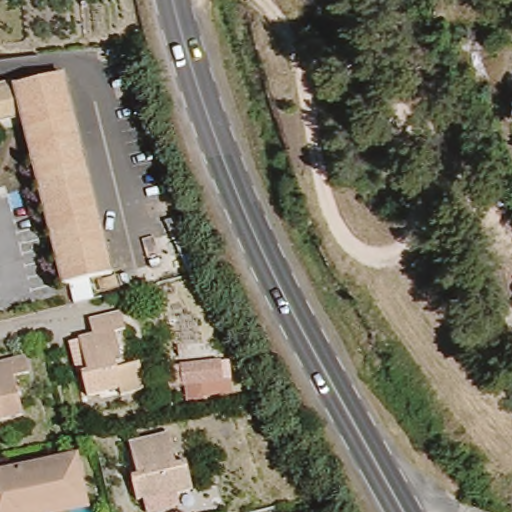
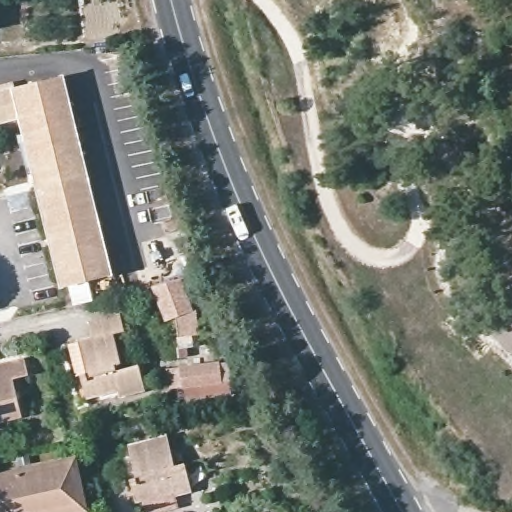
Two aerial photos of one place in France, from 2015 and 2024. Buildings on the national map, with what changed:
unchanged [(63,76),(112,276),(62,287),(21,120),(0,124),(0,91),(63,76)]
unchanged [(430,112),(452,96),(474,136),(458,148),(430,112)]
new [(181,278),(194,311),(198,310),(201,335),(179,336),(177,317),(166,321),(151,286),(181,278)]
unchanged [(68,345),(79,342),(79,340),(92,337),(89,322),(121,313),(125,331),(114,334),(122,363),(123,368),(139,365),(145,391),(121,397),(120,391),(87,399),(81,376),(81,375),(76,377),(68,345)]
unchanged [(228,385),(181,395),(175,366),(223,357),(228,385)]
unchanged [(29,376),(13,378),(23,417),(0,422),(0,364),(25,358),(29,376)]
unchanged [(175,466),(185,463),(193,492),(176,496),(175,493),(136,502),(130,479),(137,477),(129,445),(168,436),(175,466)]
unchanged [(42,512),(0,512),(0,476),(69,461),(78,504),(42,512)]

